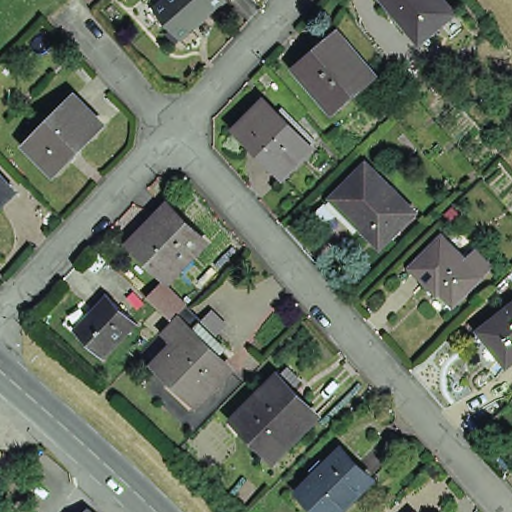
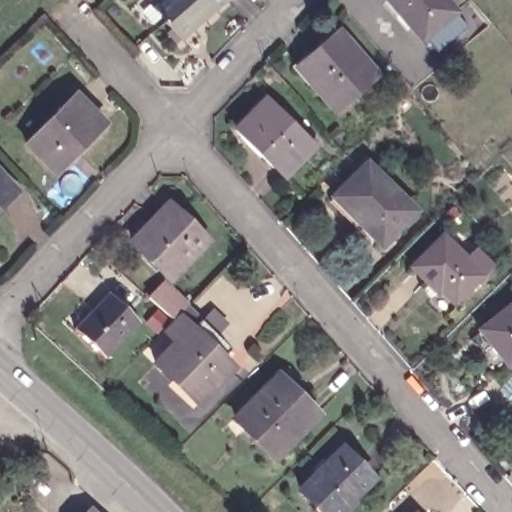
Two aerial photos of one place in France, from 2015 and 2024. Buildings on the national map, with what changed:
unchanged [(138,24),(165,0),(225,0),(211,12),(164,54),(138,24)]
unchanged [(386,0),(451,0),(462,10),(429,43),(386,0)]
unchanged [(292,68),(332,34),(368,76),(327,110),(292,68)]
unchanged [(79,95),(108,124),(59,174),(29,145),(79,95)]
unchanged [(231,135),(261,105),(287,132),(303,115),(321,136),(306,151),(277,180),(231,135)]
unchanged [(334,199),(366,167),(414,216),(381,251),(364,235),(368,232),(334,199)]
unchanged [(0,209),(0,173),(18,193),(0,209)]
unchanged [(168,212),(203,246),(167,284),(131,250),(168,212)]
unchanged [(434,294),(432,297),(408,272),(438,242),(461,265),(469,256),(485,272),(477,280),(448,308),(434,294)]
unchanged [(153,368),(173,347),(162,336),(172,326),(147,303),(163,288),(186,311),(200,325),(198,327),(217,345),(213,349),(224,358),(219,363),(231,374),(196,409),(153,368)]
unchanged [(108,294),(138,323),(104,359),(73,329),(108,294)]
unchanged [(489,329),(512,311),(512,370),(507,378),(476,340),(489,329)]
unchanged [(275,372),(316,411),(274,453),(235,415),(275,372)]
unchanged [(351,512),(314,512),(304,501),(319,485),(314,479),(324,469),(330,475),(346,459),(375,488),(351,512)]
unchanged [(96,512),(80,512),(86,504),(96,512)]

